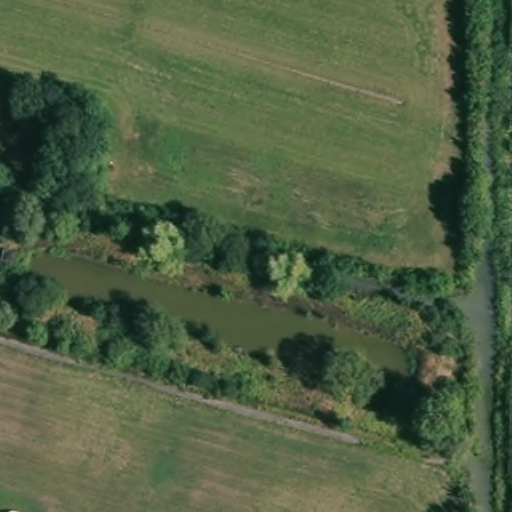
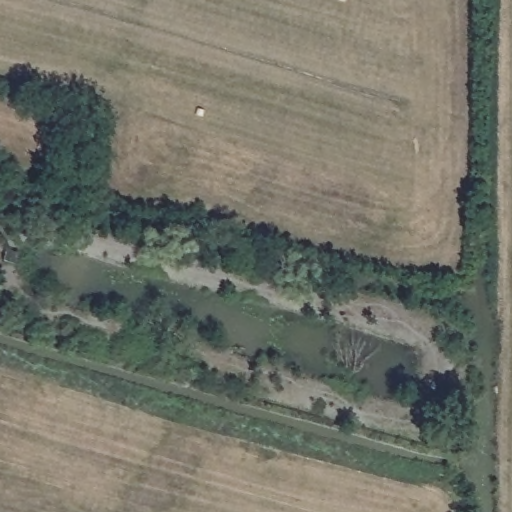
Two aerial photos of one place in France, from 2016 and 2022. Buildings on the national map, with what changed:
[]

